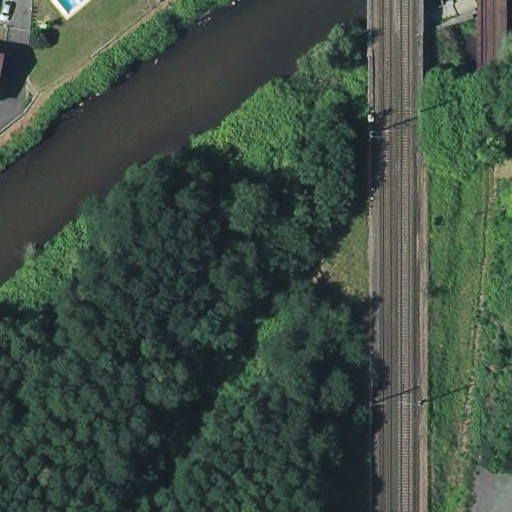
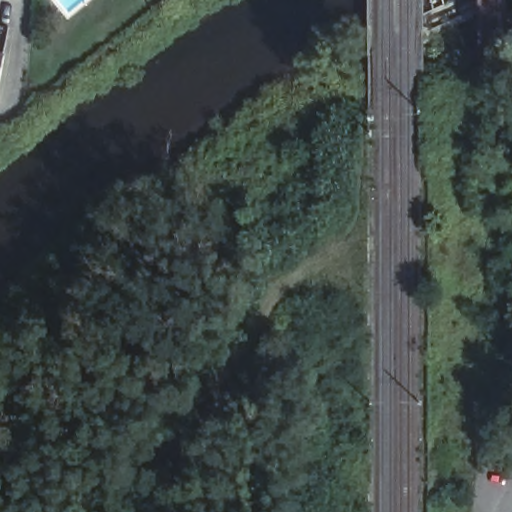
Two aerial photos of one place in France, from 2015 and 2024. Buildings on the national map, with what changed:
unchanged [(2,94),(0,97),(0,53),(10,54),(2,94)]

